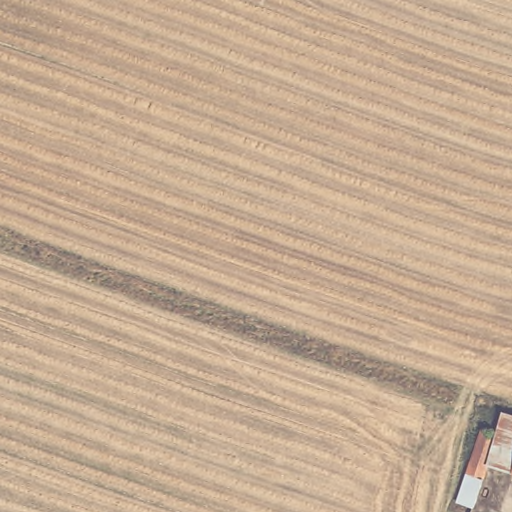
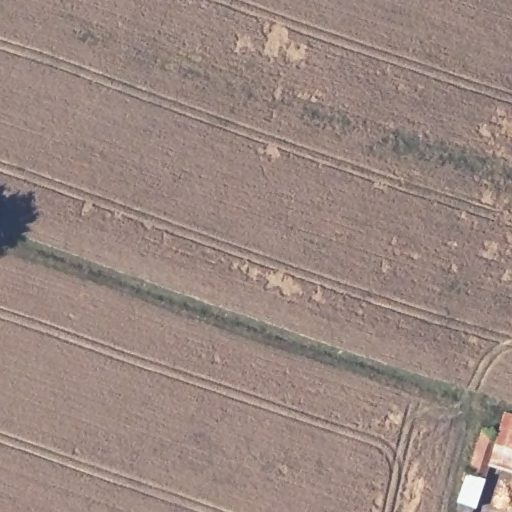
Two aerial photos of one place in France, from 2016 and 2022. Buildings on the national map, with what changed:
unchanged [(496,425),(499,412),(512,416),(512,468),(485,461),(472,505),(455,498),(483,424),(496,425)]

